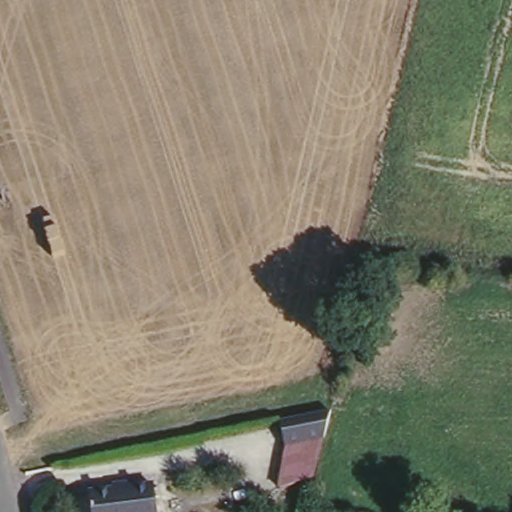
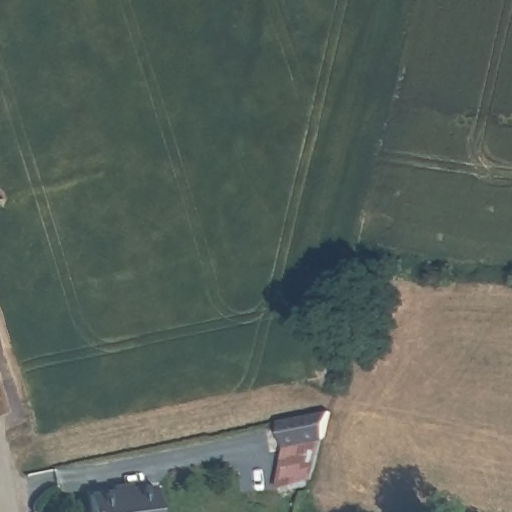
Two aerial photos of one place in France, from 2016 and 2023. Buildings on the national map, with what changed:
unchanged [(281,487),(287,442),(283,420),(334,409),(317,482),(281,487)]
unchanged [(126,486),(127,491),(150,487),(154,512),(90,512),(87,499),(111,494),(110,488),(126,486)]

